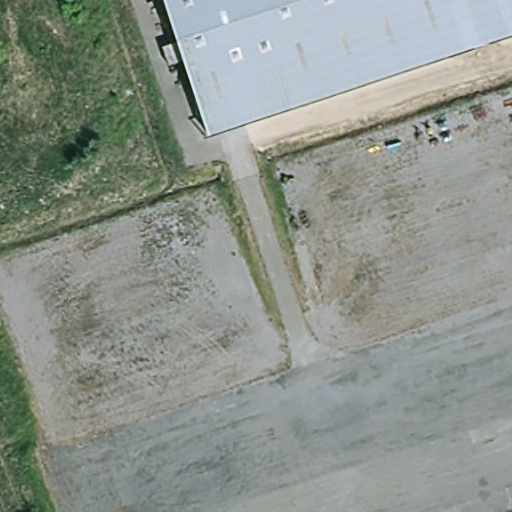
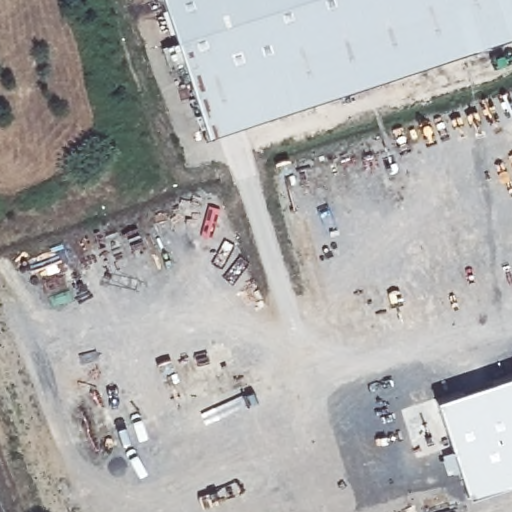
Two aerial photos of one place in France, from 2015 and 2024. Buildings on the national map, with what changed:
unchanged [(512,37),(212,135),(187,60),(172,65),(167,46),(181,41),(168,0),(512,0),(512,37)]
new [(512,482),(467,497),(436,400),(512,375),(512,482)]

